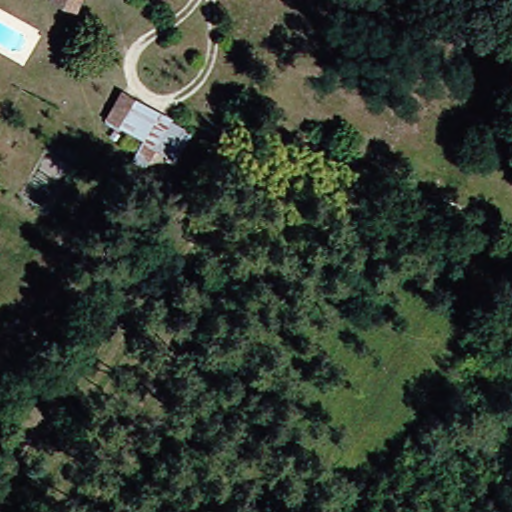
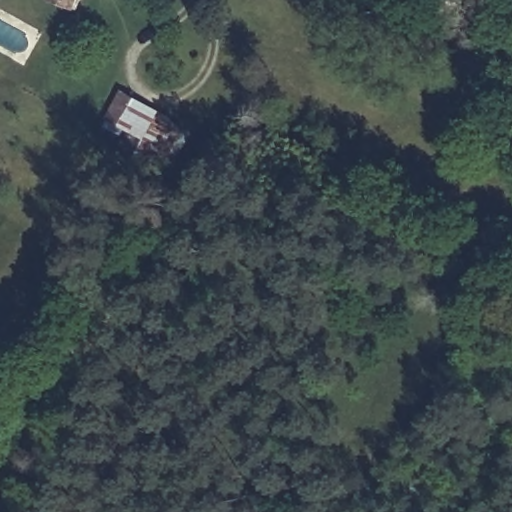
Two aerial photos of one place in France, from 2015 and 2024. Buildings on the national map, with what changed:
unchanged [(54,14),(30,1),(31,0),(61,0),(54,14)]
unchanged [(114,91),(178,123),(164,151),(99,120),(114,91)]

